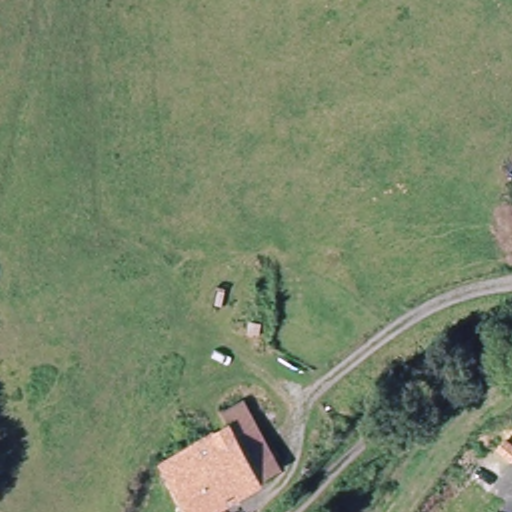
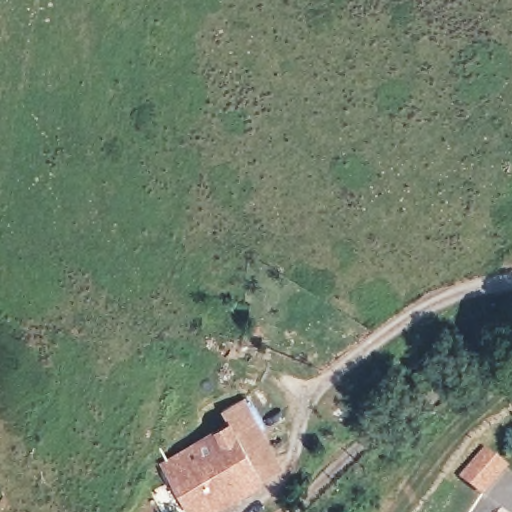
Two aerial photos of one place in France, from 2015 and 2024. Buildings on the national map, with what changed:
unchanged [(230,417),(248,405),(289,470),(268,482),(236,428),(230,417)]
unchanged [(217,512),(200,512),(171,466),(179,461),(227,434),(236,428),(268,482),(217,512)]
new [(512,467),(511,467),(508,465),(484,496),(458,478),(483,446),(495,454),(503,443),(512,449),(512,467)]

